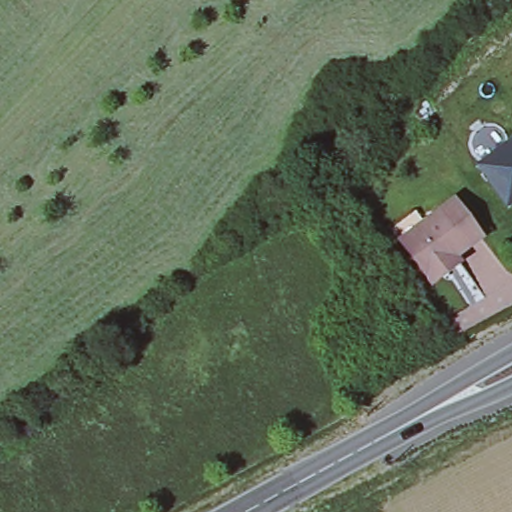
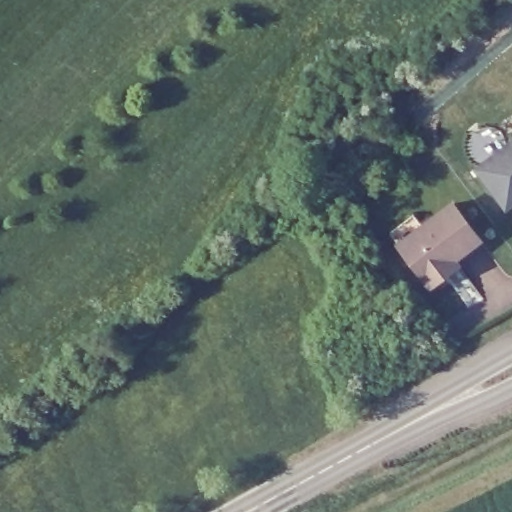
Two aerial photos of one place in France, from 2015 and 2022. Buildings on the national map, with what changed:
unchanged [(500,209),(472,168),(512,139),(512,200),(500,209)]
unchanged [(446,277),(427,290),(397,247),(390,236),(414,218),(422,230),(452,209),(478,245),(452,263),(456,270),(446,277)]

